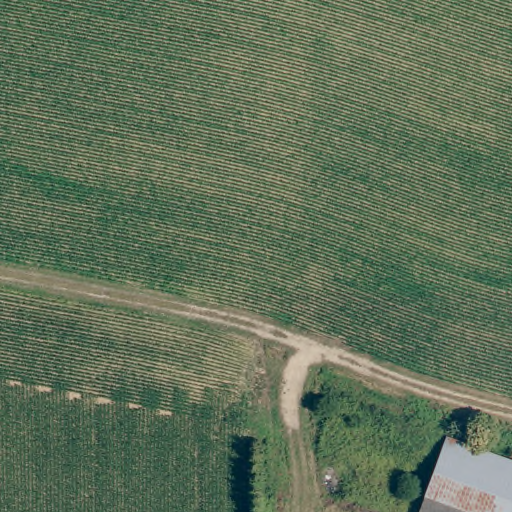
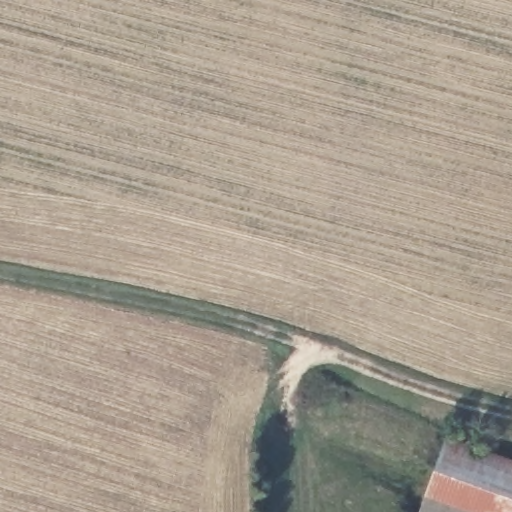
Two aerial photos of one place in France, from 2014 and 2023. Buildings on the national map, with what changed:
unchanged [(512,456),(512,512),(424,512),(452,435),(512,456)]

